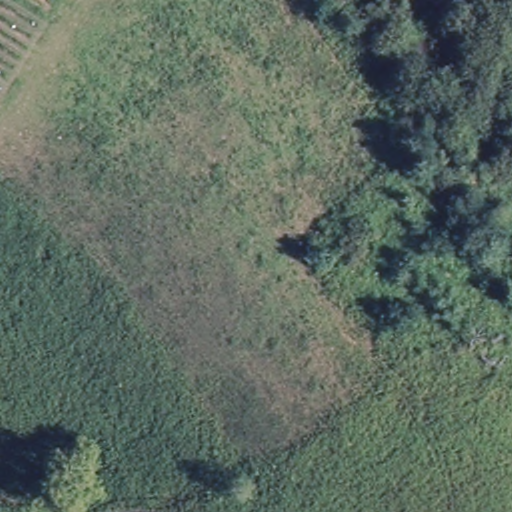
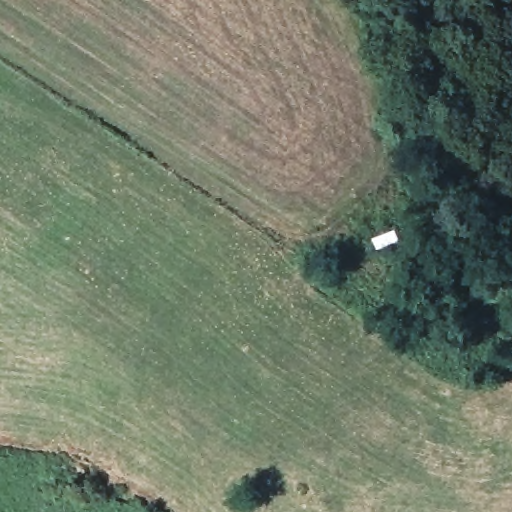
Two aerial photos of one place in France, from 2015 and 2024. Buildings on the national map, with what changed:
[]

